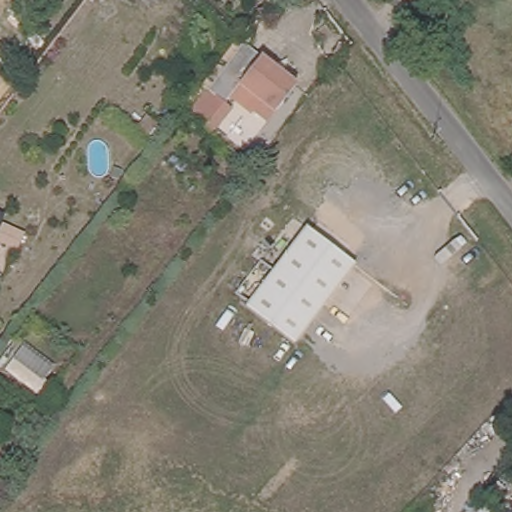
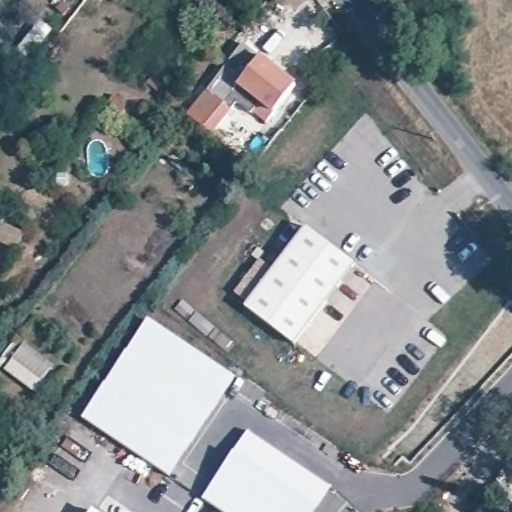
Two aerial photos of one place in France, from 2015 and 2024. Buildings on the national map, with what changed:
unchanged [(228,96),(222,104),(230,111),(210,136),(185,119),(242,42),(294,83),(265,125),(228,96)]
unchanged [(0,91),(0,79),(6,83),(0,91)]
unchanged [(241,307),(300,228),(352,266),(291,349),(241,307)]
new [(146,319),(232,377),(166,475),(80,417),(146,319)]
unchanged [(55,364),(36,395),(0,367),(0,364),(26,337),(55,364)]
new [(247,430),(329,485),(311,512),(221,512),(201,499),(247,430)]
new [(91,509),(96,512),(89,512),(91,509)]

